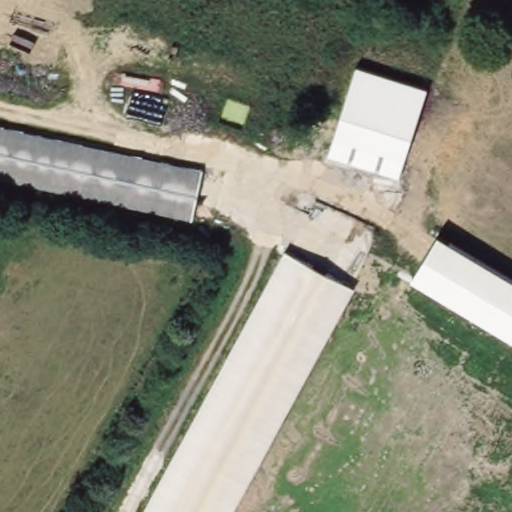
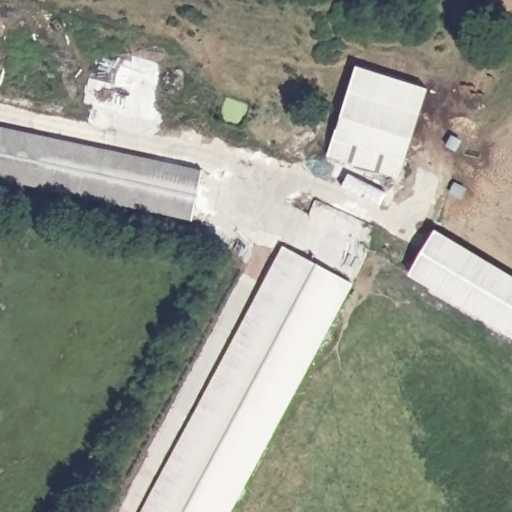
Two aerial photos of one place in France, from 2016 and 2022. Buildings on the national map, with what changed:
unchanged [(358,64),(428,85),(400,175),(330,154),(358,64)]
unchanged [(191,213),(0,171),(0,124),(201,166),(191,213)]
unchanged [(438,232),(512,277),(512,337),(412,277),(438,232)]
unchanged [(146,512),(287,249),(353,287),(233,512),(146,512)]

